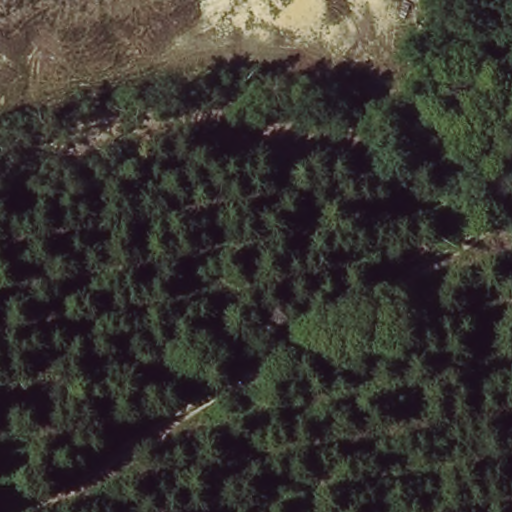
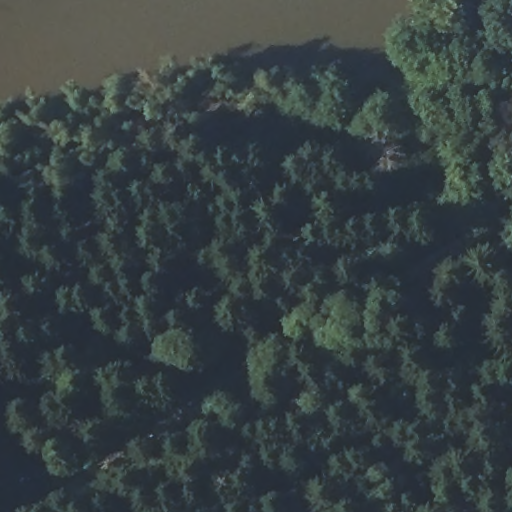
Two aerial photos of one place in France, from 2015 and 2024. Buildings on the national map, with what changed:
unchanged [(429,107),(454,116),(444,149),(417,139),(429,107)]

